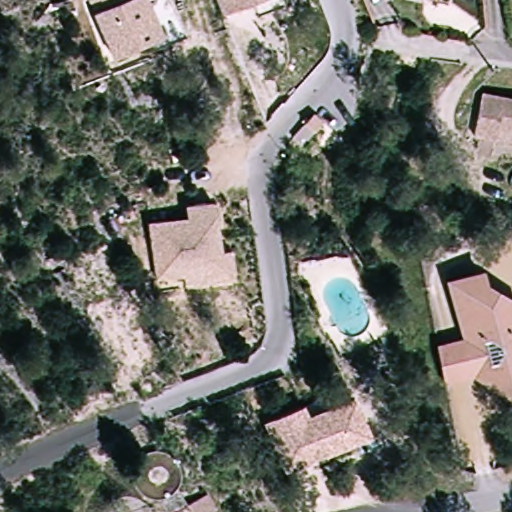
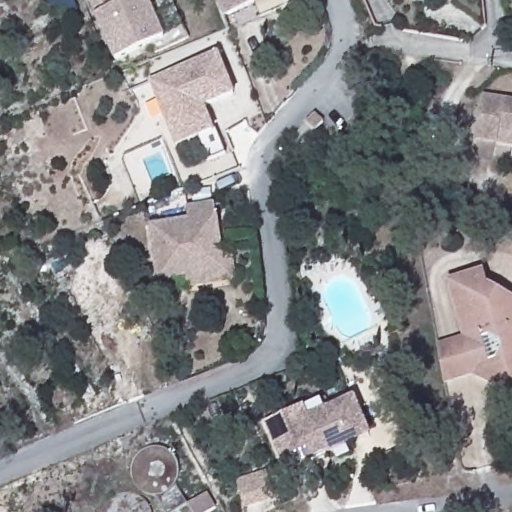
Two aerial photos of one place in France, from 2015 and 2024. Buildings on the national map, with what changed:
unchanged [(114,64),(94,20),(105,15),(98,0),(143,0),(162,42),(114,64)]
unchanged [(222,21),(213,0),(271,0),(272,1),(222,21)]
new [(215,130),(175,147),(150,80),(219,52),(237,95),(206,108),(215,130)]
unchanged [(512,136),(495,132),(501,100),(512,102),(512,136)]
unchanged [(311,120),(321,129),(301,151),(300,152),(291,144),(292,142),(311,120)]
unchanged [(187,225),(185,213),(213,209),(222,276),(157,285),(149,230),(187,225)]
unchanged [(75,268),(55,281),(48,265),(67,255),(75,268)]
unchanged [(446,281),(479,272),(487,287),(512,307),(512,314),(507,323),(512,326),(512,388),(489,370),(472,376),(470,372),(465,355),(462,338),(446,281)]
unchanged [(462,338),(465,355),(470,372),(440,377),(434,343),(462,338)]
unchanged [(282,470),(263,421),(318,400),(323,412),(351,400),(365,436),(282,470)]
unchanged [(206,497),(213,512),(188,512),(186,507),(206,497)]

